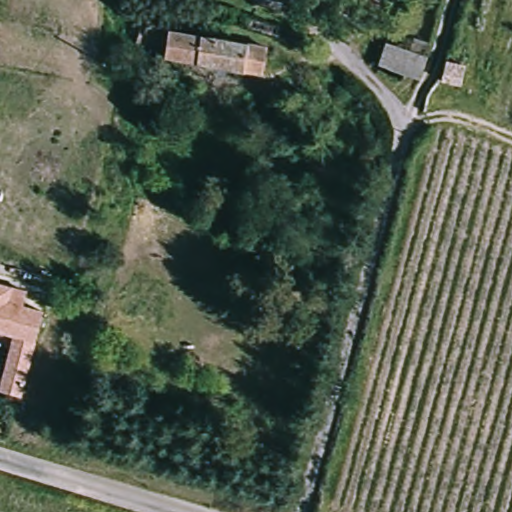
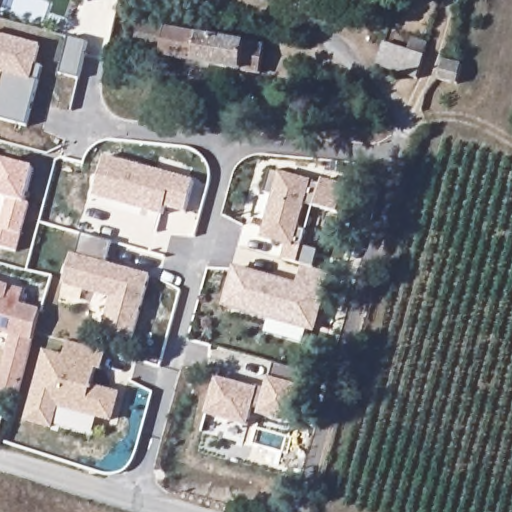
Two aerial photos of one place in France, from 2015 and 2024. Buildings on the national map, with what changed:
new [(66,0),(91,0),(88,9),(66,0)]
new [(116,0),(122,0),(121,2),(116,0)]
unchanged [(263,65),(252,63),(250,75),(180,61),(181,47),(156,42),(159,29),(266,50),(263,65)]
new [(33,85),(37,70),(45,72),(40,87),(28,132),(0,125),(0,97),(5,78),(0,77),(0,41),(41,52),(33,85)]
new [(69,42),(88,47),(80,85),(60,80),(69,42)]
unchanged [(376,42),(424,56),(423,59),(414,78),(371,65),(376,42)]
unchanged [(446,94),(429,91),(437,62),(454,66),(446,94)]
new [(185,212),(165,209),(163,216),(93,197),(105,157),(193,181),(185,212)]
new [(25,204),(30,204),(20,235),(16,252),(0,248),(0,222),(6,199),(0,198),(0,158),(1,159),(34,167),(25,204)]
new [(281,176),(283,172),(314,180),(311,184),(321,186),(322,181),(347,187),(339,216),(314,208),(304,247),(319,252),(313,268),(283,260),(286,247),(263,240),(276,196),(266,194),(272,174),(281,176)]
new [(75,260),(80,262),(86,240),(116,248),(111,270),(153,281),(136,344),(107,336),(116,303),(67,290),(75,260)]
new [(236,277),(297,294),(303,273),(329,281),(314,338),(233,317),(226,314),(236,277)]
unchanged [(21,307),(42,313),(35,342),(13,336),(13,337),(0,333),(0,286),(25,293),(21,307)]
new [(118,401),(113,422),(58,407),(53,428),(28,422),(46,355),(65,360),(69,342),(106,353),(102,372),(98,371),(93,388),(110,392),(120,396),(118,401)]
new [(221,384),(262,395),(263,392),(271,395),(274,383),(275,383),(279,368),(308,377),(304,392),(305,392),(295,428),(263,420),(265,415),(257,413),(252,432),(248,448),(206,437),(211,421),(221,384)]

